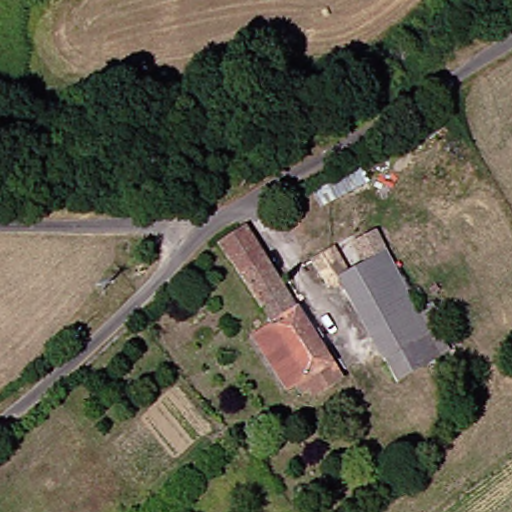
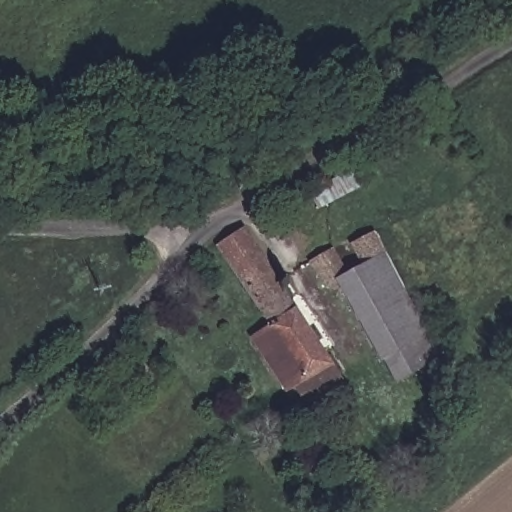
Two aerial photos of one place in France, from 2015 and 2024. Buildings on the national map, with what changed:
unchanged [(300,395),(263,341),(277,328),(224,248),(250,230),(341,366),(300,395)]
unchanged [(349,281),(342,286),(326,262),(342,251),(356,274),(370,265),(362,250),(381,237),(389,250),(387,254),(435,335),(395,358),(349,281)]
unchanged [(435,335),(448,359),(410,383),(395,358),(435,335)]

